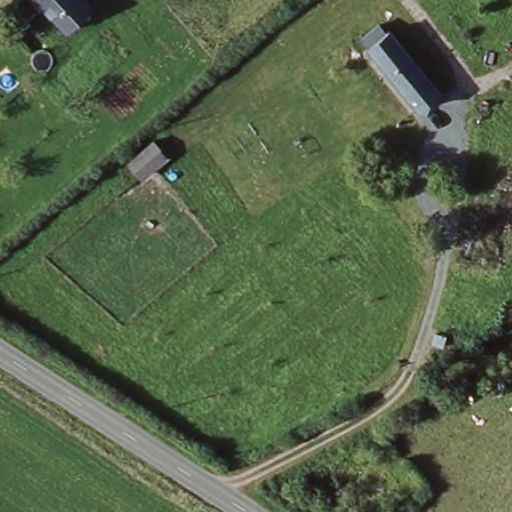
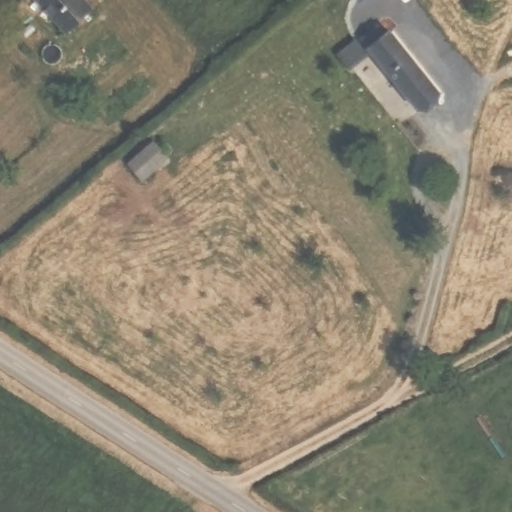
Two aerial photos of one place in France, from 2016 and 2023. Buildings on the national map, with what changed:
unchanged [(61,34),(30,0),(78,0),(86,10),(61,34)]
unchanged [(379,20),(414,65),(439,91),(416,111),(364,52),(345,66),(334,52),(379,20)]
unchanged [(165,160),(138,185),(124,169),(150,145),(165,160)]

